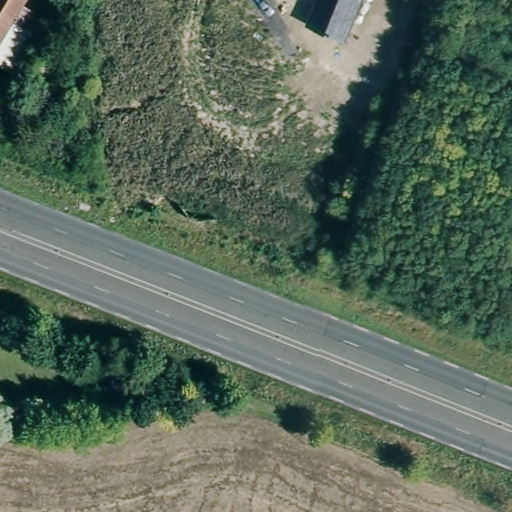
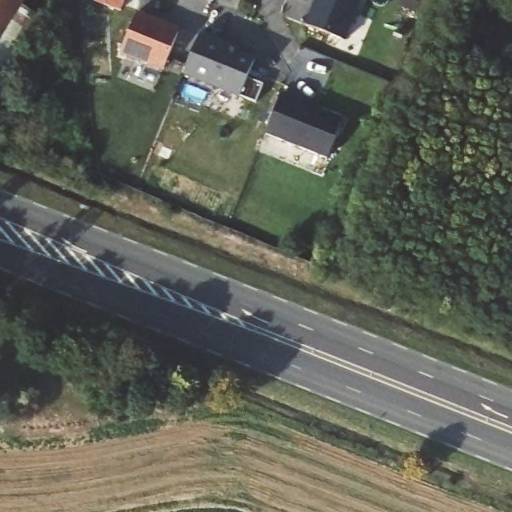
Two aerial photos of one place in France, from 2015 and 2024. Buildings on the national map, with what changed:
unchanged [(0,36),(0,0),(18,0),(0,36)]
unchanged [(344,37),(303,20),(312,0),(360,0),(344,37)]
new [(163,70),(120,52),(138,11),(179,29),(163,70)]
new [(185,75),(202,33),(241,48),(241,51),(256,58),(239,97),(185,75)]
new [(328,159),(266,133),(283,94),(343,118),(328,159)]

